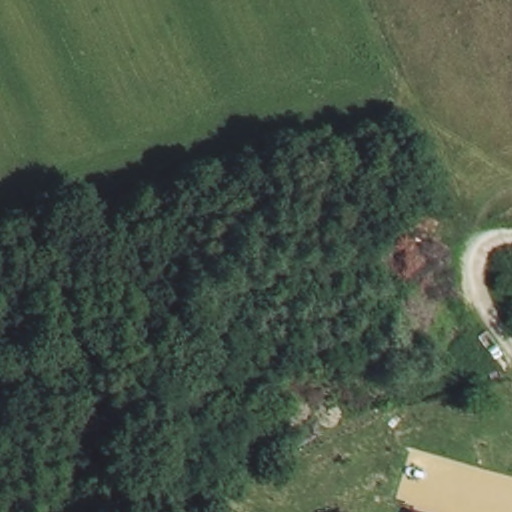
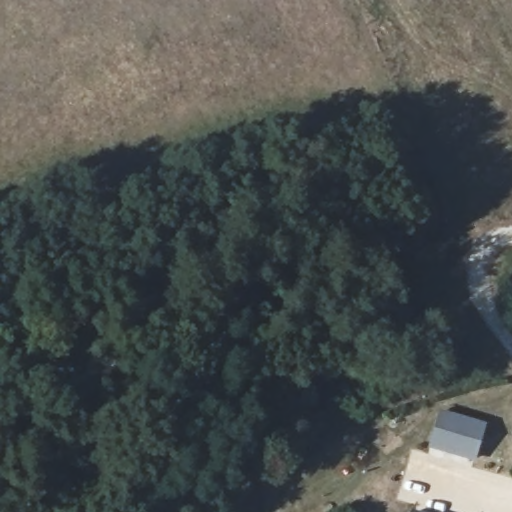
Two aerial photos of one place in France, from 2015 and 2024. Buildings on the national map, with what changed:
new [(440,409),(487,424),(475,463),(429,449),(440,409)]
unchanged [(407,510),(414,512),(407,512),(407,510)]

